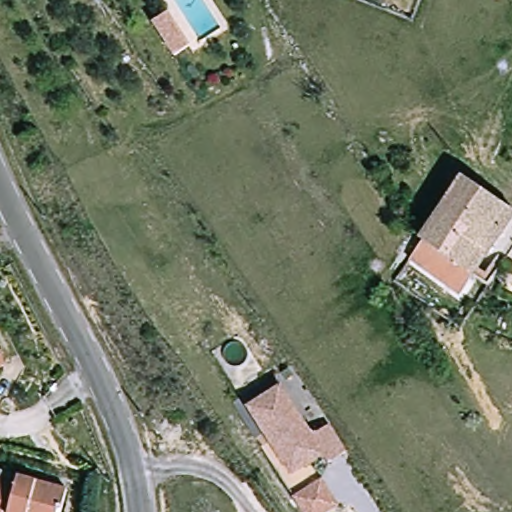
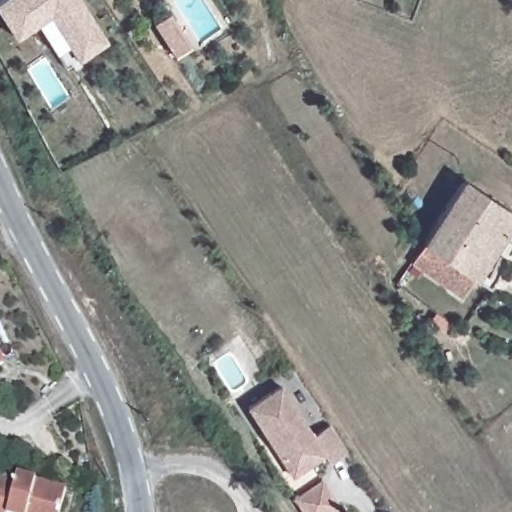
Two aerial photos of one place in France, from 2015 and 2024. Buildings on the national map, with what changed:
new [(78,62),(50,17),(15,39),(0,15),(0,0),(82,0),(109,42),(78,62)]
new [(154,24),(171,12),(193,46),(176,57),(154,24)]
demolished [(205,59),(196,66),(173,34),(183,26),(205,59)]
unchanged [(500,239),(489,253),(457,231),(469,212),(450,198),(463,177),(512,209),(512,221),(500,239)]
unchanged [(492,290),(473,276),(462,291),(411,255),(422,238),(450,198),(469,212),(457,231),(489,253),(479,266),(487,272),(497,259),(508,266),(492,290)]
unchanged [(0,366),(0,341),(10,360),(0,366)]
demolished [(0,372),(0,359),(3,371),(0,372)]
unchanged [(329,462),(324,454),(291,473),(249,405),(283,385),(313,435),(330,425),(346,451),(329,462)]
unchanged [(0,489),(3,475),(21,479),(23,470),(65,481),(58,512),(0,512),(0,489)]
unchanged [(333,485),(348,511),(346,512),(314,512),(307,501),(333,485)]

